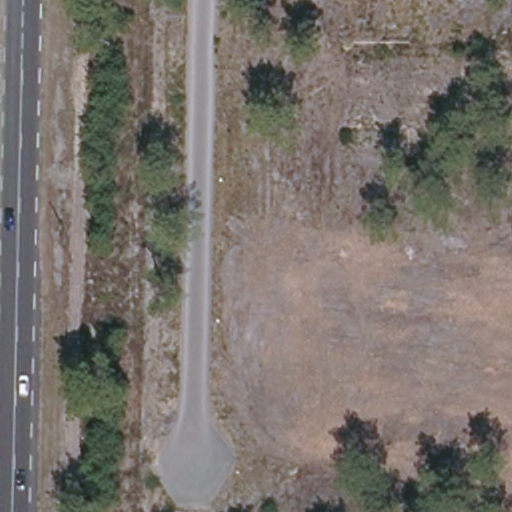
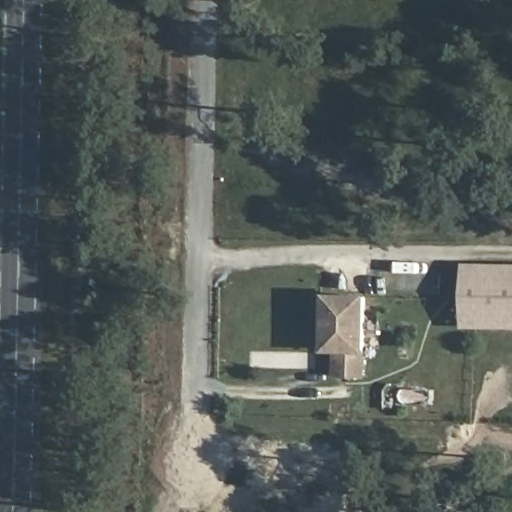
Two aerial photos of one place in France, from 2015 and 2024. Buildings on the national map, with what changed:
new [(464,262),(512,263),(512,328),(464,327),(464,262)]
new [(368,352),(367,377),(337,376),(338,352),(322,352),(323,293),(369,293),(368,352)]

